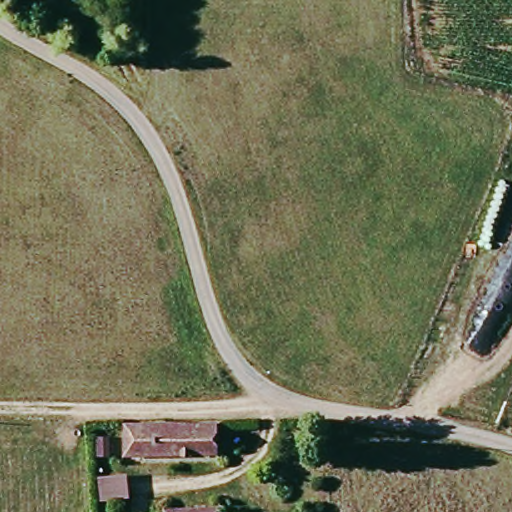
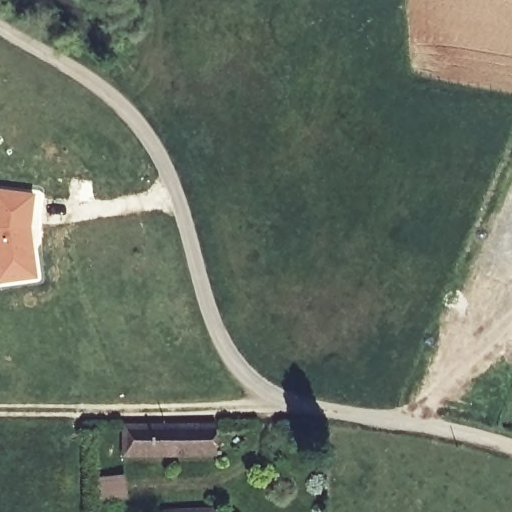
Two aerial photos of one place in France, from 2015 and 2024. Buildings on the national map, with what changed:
new [(30,225),(37,277),(0,283),(0,189),(35,193),(30,225)]
unchanged [(217,448),(122,456),(120,423),(217,421),(217,448)]
unchanged [(118,498),(97,498),(96,477),(118,477),(118,498)]
unchanged [(217,510),(217,512),(161,512),(161,511),(217,510)]

